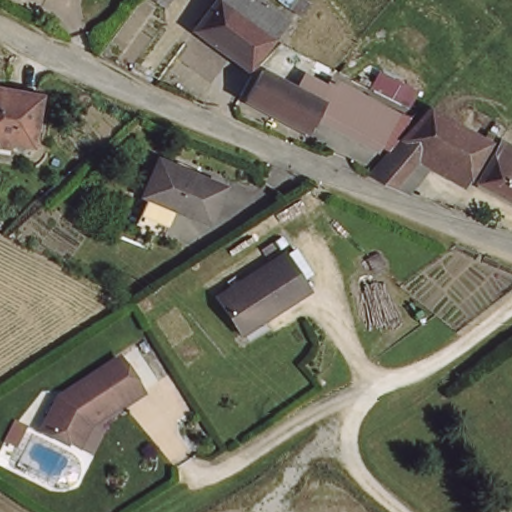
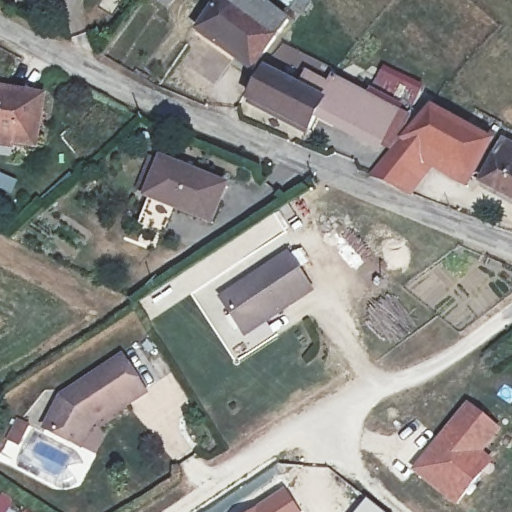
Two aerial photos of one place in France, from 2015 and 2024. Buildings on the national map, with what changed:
unchanged [(158,0),(177,0),(170,10),(158,0)]
unchanged [(291,22),(253,75),(194,29),(215,0),(263,0),(291,22)]
unchanged [(402,115),(386,147),(322,114),(311,135),(247,101),(265,68),(300,87),(307,76),(326,87),(332,77),(402,115)]
unchanged [(30,150),(0,142),(0,89),(40,100),(30,150)]
unchanged [(497,143),(475,180),(441,162),(410,196),(404,193),(369,175),(397,142),(427,109),(431,106),(497,143)]
unchanged [(505,139),(512,142),(512,199),(480,182),(505,139)]
unchanged [(210,217),(148,194),(161,160),(222,182),(210,217)]
unchanged [(217,298),(285,253),(310,291),(264,321),(261,316),(239,331),(217,298)]
unchanged [(77,442),(70,438),(42,425),(57,392),(117,353),(140,390),(98,415),(90,420),(77,442)]
new [(467,401),(502,430),(484,452),(495,461),(455,508),(409,470),(467,401)]
new [(75,457),(61,484),(19,463),(22,456),(27,458),(37,438),(75,457)]
new [(299,512),(248,512),(284,489),(299,512)]
new [(384,512),(354,512),(366,497),(384,512)]

